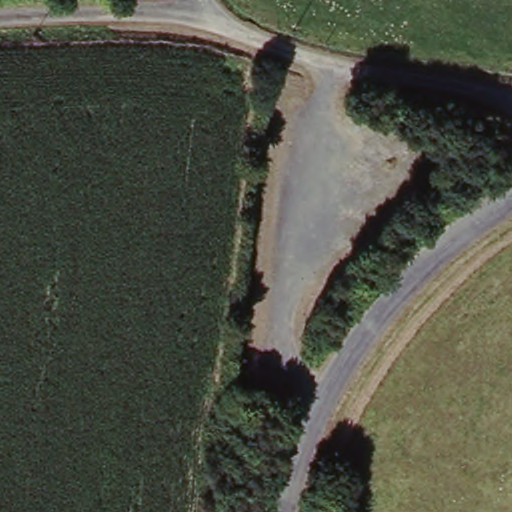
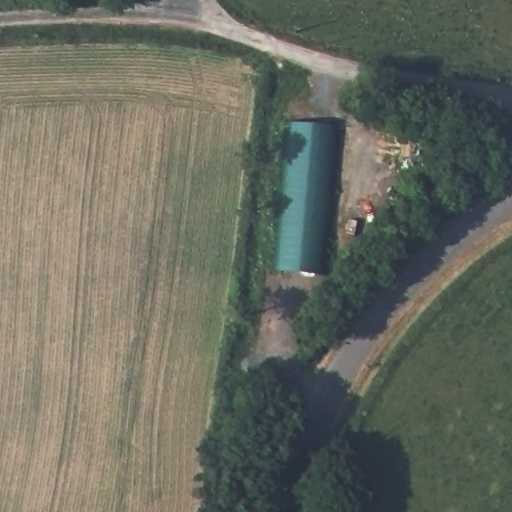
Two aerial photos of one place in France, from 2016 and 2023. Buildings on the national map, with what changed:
new [(321,277),(280,274),(291,124),(336,126),(321,277)]

